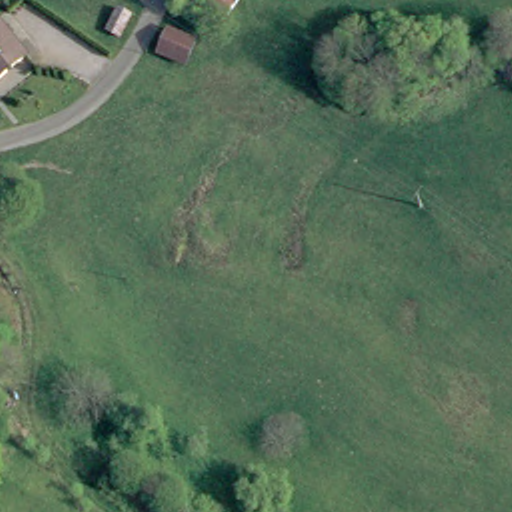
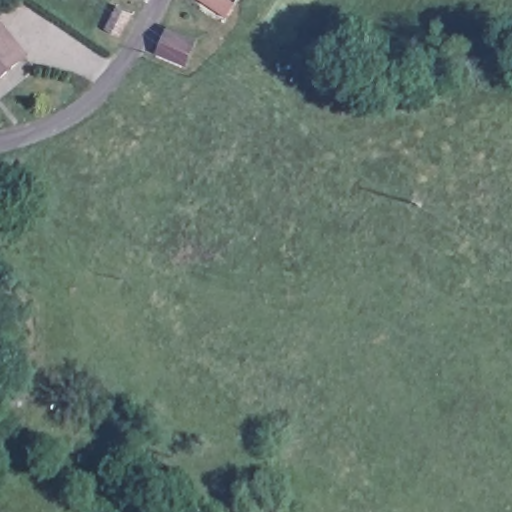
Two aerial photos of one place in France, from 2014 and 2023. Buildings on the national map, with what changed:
unchanged [(228,12),(210,0),(230,0),(234,3),(228,12)]
unchanged [(0,88),(0,27),(30,59),(0,88)]
unchanged [(158,50),(168,27),(196,39),(186,62),(158,50)]

